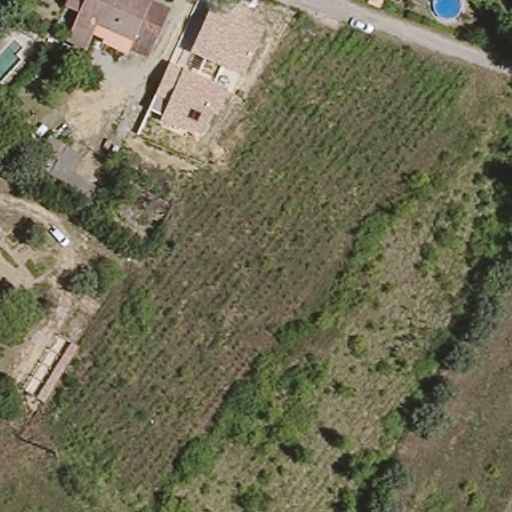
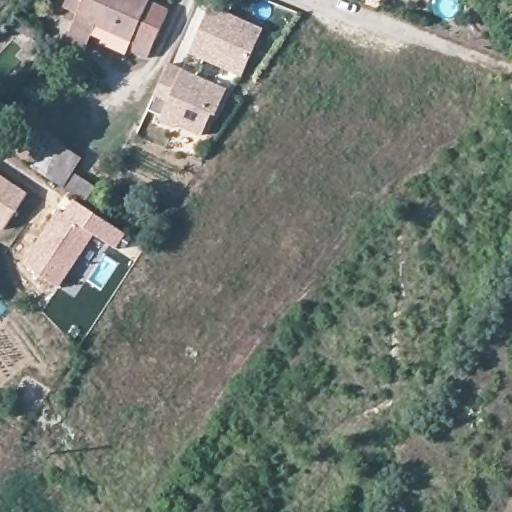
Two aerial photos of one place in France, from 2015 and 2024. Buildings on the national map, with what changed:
unchanged [(141,58),(120,47),(122,37),(73,11),(60,5),(62,0),(141,0),(163,11),(141,58)]
unchanged [(242,77),(187,52),(212,3),(263,27),(242,77)]
unchanged [(217,115),(214,113),(204,135),(180,124),(177,128),(160,122),(163,116),(150,110),(167,62),(227,88),(217,115)]
unchanged [(65,149),(87,162),(77,177),(103,196),(90,215),(75,205),(40,184),(65,149)]
new [(5,229),(0,226),(0,174),(28,193),(5,229)]
new [(90,215),(125,238),(114,253),(92,239),(57,292),(23,269),(59,215),(65,219),(75,205),(90,215)]

